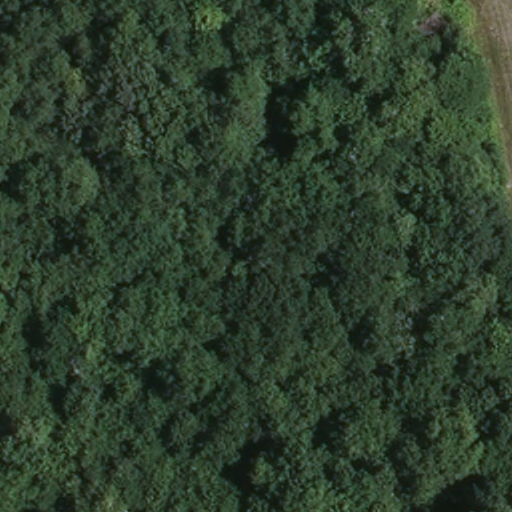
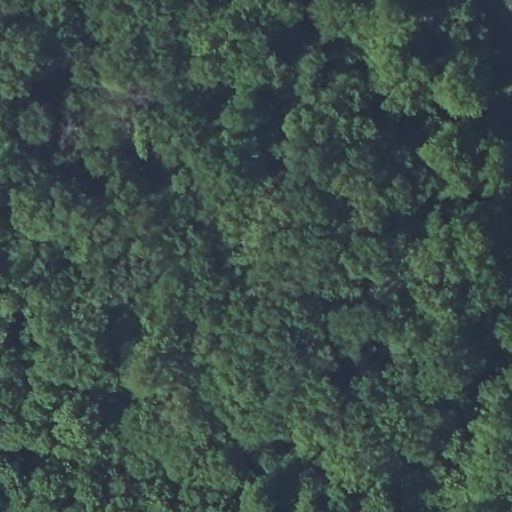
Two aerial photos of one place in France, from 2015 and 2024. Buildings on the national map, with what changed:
[]

